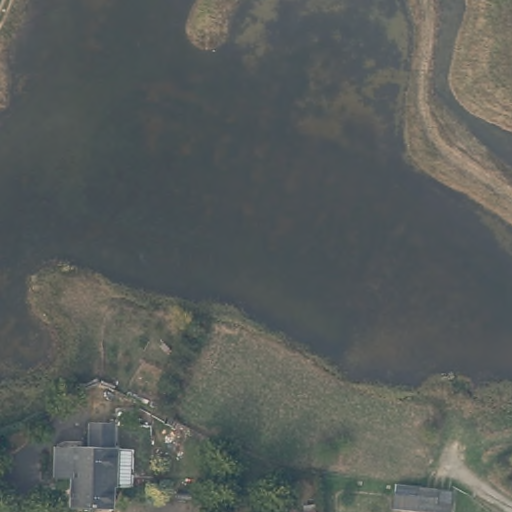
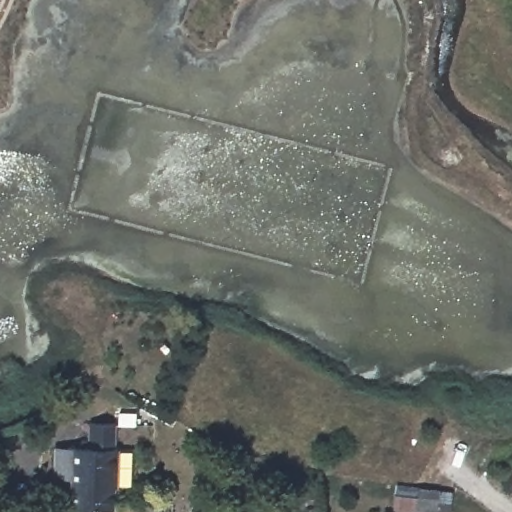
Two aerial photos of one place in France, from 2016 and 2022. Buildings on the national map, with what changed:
unchanged [(117,438),(117,450),(119,450),(118,490),(115,490),(114,512),(74,510),(74,481),(57,481),(58,449),(91,450),(92,438),(117,438)]
unchanged [(448,486),(445,509),(389,502),(391,479),(448,486)]

